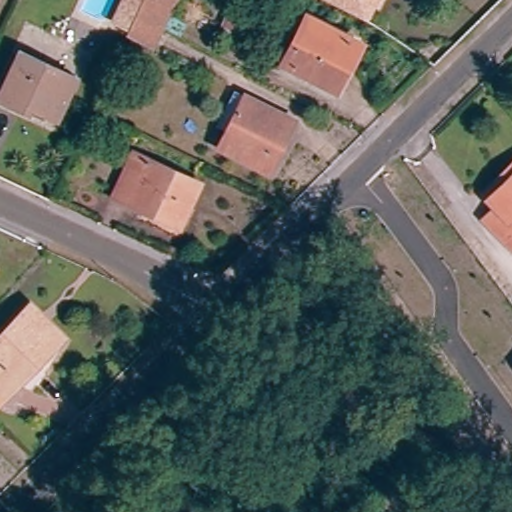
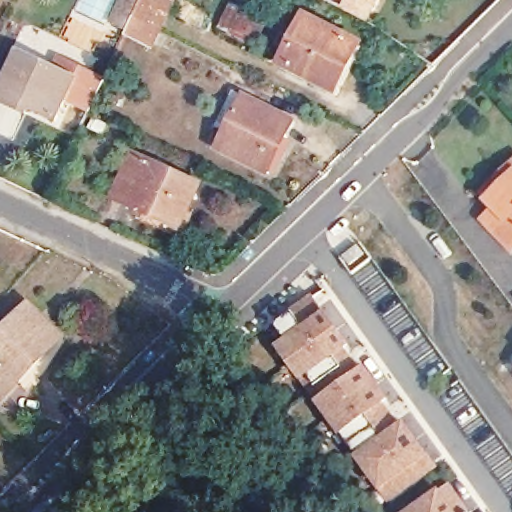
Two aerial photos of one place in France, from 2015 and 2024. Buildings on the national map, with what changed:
unchanged [(2,0),(0,5),(0,0),(2,0)]
unchanged [(154,25),(132,15),(139,0),(166,0),(162,8),(154,25)]
unchanged [(305,0),(321,0),(318,6),(305,0)]
unchanged [(321,0),(369,0),(356,29),(318,6),(321,0)]
unchanged [(333,91),(285,67),(304,25),(353,49),(333,91)]
unchanged [(56,125),(46,120),(43,126),(1,107),(22,59),(75,83),(56,125)]
unchanged [(273,175),(261,169),(220,149),(245,98),(289,120),(282,134),(291,139),(273,175)]
unchanged [(178,231),(117,202),(135,164),(195,194),(178,231)]
unchanged [(498,211),(487,200),(482,194),(512,167),(512,250),(487,221),(498,211)]
new [(388,485),(316,386),(299,362),(277,331),(285,324),(273,307),(305,285),(312,280),(324,297),(347,328),(339,333),(356,357),(364,352),(386,383),(378,388),(396,412),(403,407),(425,437),(435,451),(426,458),(388,485)]
unchanged [(31,316),(58,346),(16,387),(4,399),(0,403),(0,346),(31,316)]
new [(401,501),(438,474),(447,467),(457,481),(478,511),(477,512),(409,512),(401,501)]

